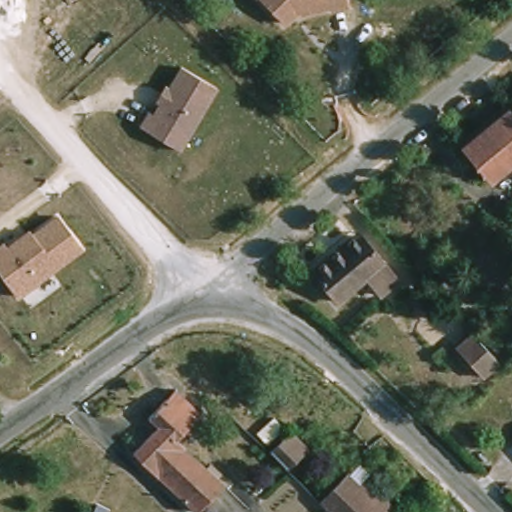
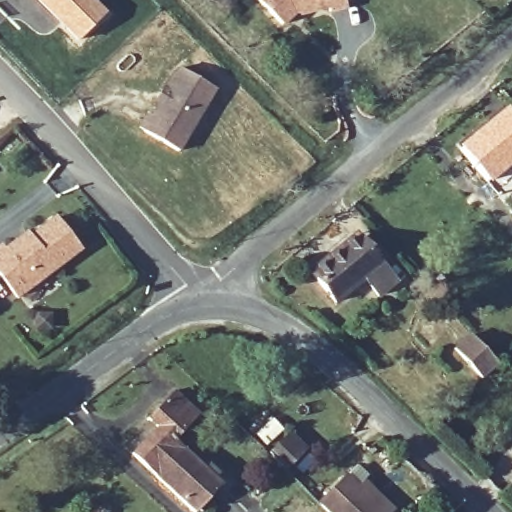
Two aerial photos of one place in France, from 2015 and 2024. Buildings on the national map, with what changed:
new [(107,12),(77,42),(36,0),(95,0),(107,12)]
unchanged [(347,6),(330,10),(328,6),(305,13),(295,12),(289,19),(283,25),(258,0),(345,0),(347,6)]
unchanged [(139,125),(147,110),(154,112),(160,104),(156,100),(165,85),(170,87),(180,69),(219,89),(182,151),(139,125)]
unchanged [(507,110),(512,116),(512,158),(486,181),(458,146),(507,110)]
unchanged [(0,275),(0,242),(5,247),(28,229),(31,234),(55,215),(82,250),(18,298),(0,275)]
unchanged [(384,301),(366,280),(340,305),(313,275),(357,235),(402,285),(384,301)]
unchanged [(472,382),(444,353),(465,335),(492,365),(472,382)]
unchanged [(156,428),(147,417),(176,389),(199,413),(175,435),(185,445),(157,472),(134,448),(156,428)]
unchanged [(282,437),(299,455),(282,472),(266,455),(282,437)]
unchanged [(197,512),(196,512),(157,472),(185,445),(223,485),(197,512)]
unchanged [(343,512),(326,495),(350,471),(389,511),(389,512),(343,512)]

